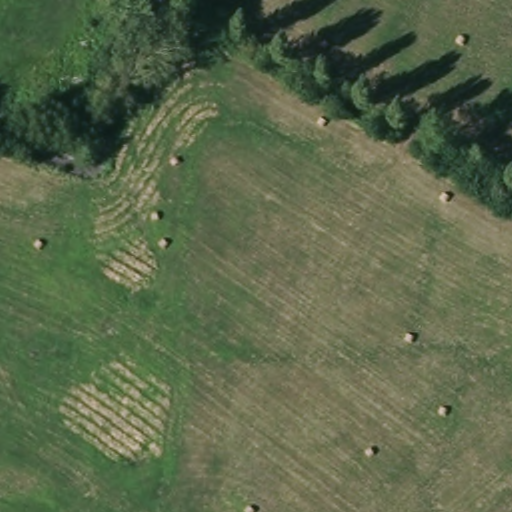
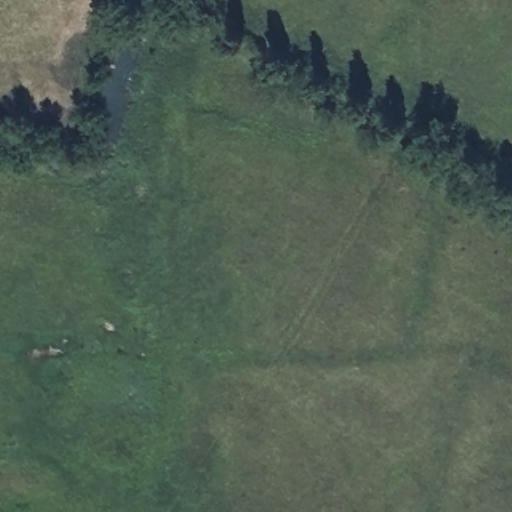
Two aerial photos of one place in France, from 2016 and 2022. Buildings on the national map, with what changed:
[]

